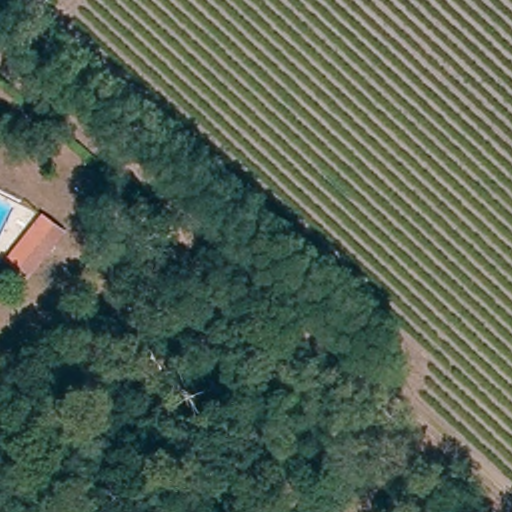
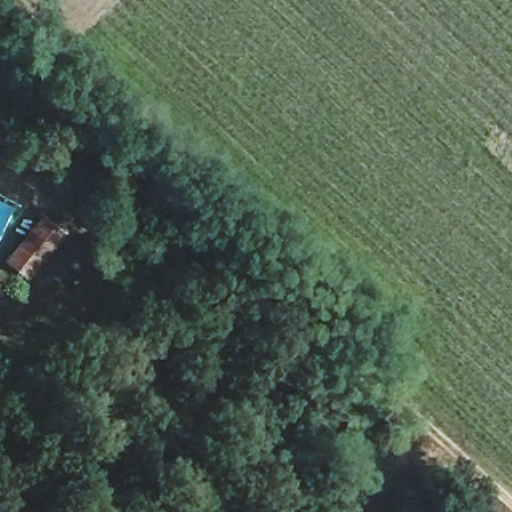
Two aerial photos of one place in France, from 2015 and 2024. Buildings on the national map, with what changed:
unchanged [(22,285),(3,266),(37,226),(45,233),(51,238),(59,246),(29,276),(22,285)]

